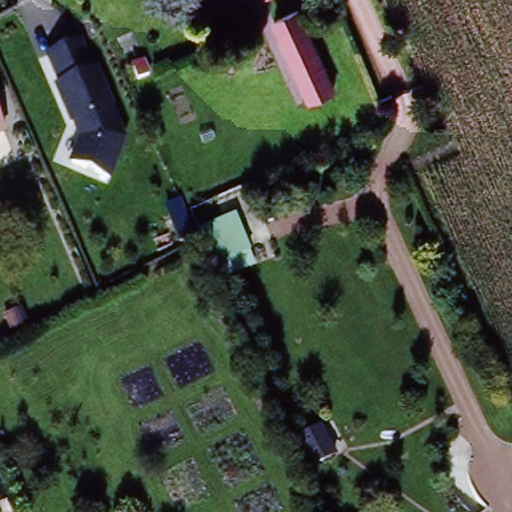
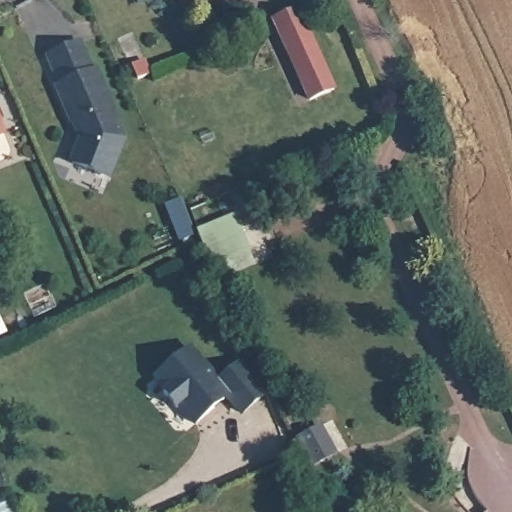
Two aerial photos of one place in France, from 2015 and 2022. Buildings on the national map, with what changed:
unchanged [(299,11),(336,91),(314,101),(276,21),(299,11)]
unchanged [(72,165),(83,136),(74,126),(57,88),(60,86),(48,57),(81,44),(94,73),(98,71),(113,108),(112,108),(125,139),(111,179),(72,165)]
unchanged [(137,61),(144,76),(135,80),(128,65),(137,61)]
unchanged [(3,129),(0,130),(0,122),(3,129)]
unchanged [(216,219),(220,226),(227,223),(235,242),(211,254),(199,228),(216,219)]
new [(181,410),(177,413),(162,393),(165,391),(154,377),(192,347),(220,380),(243,362),(268,396),(241,415),(229,400),(195,427),(181,410)]
unchanged [(6,499),(9,505),(0,509),(0,485),(6,499)]

